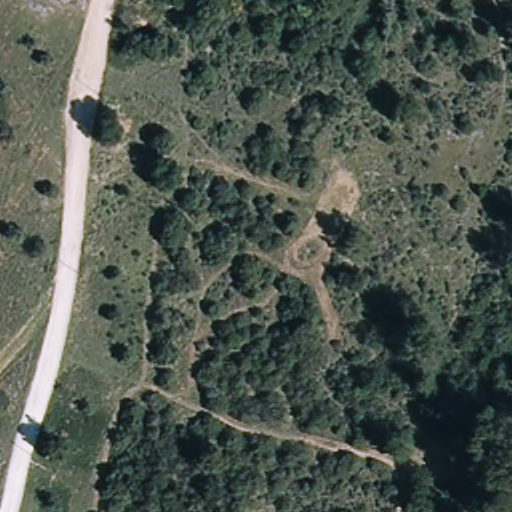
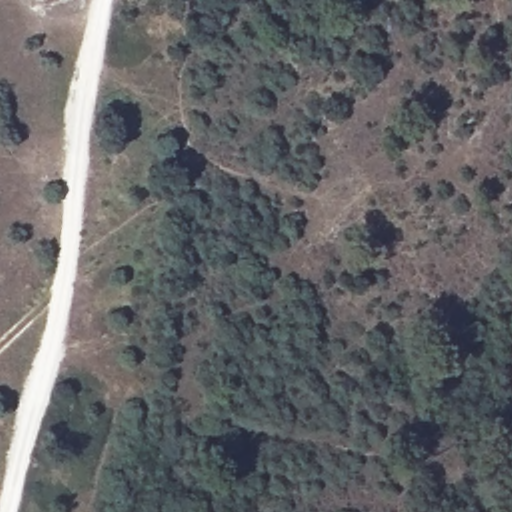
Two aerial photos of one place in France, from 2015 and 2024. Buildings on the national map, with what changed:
[]

